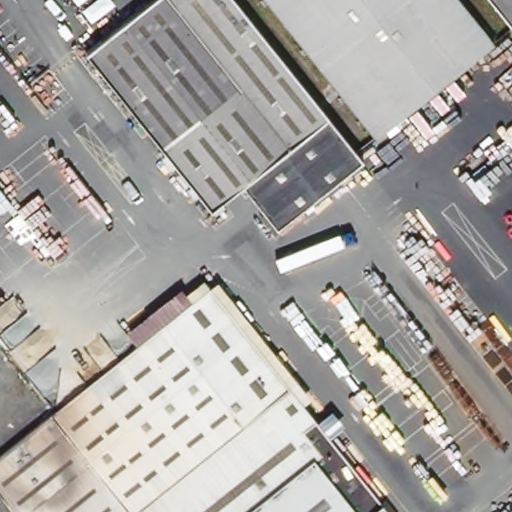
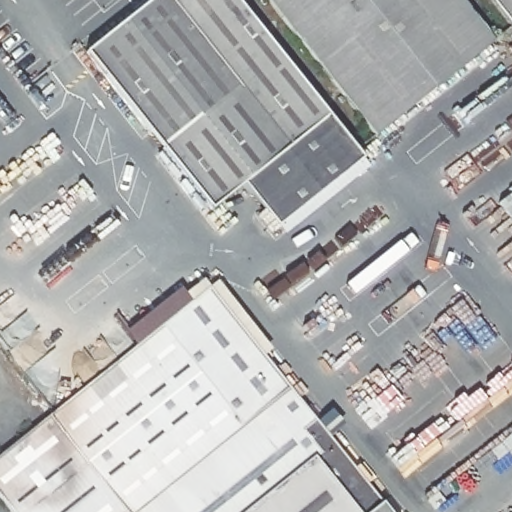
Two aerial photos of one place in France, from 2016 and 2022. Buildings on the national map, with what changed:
unchanged [(363,160),(277,229),(242,186),(211,211),(86,54),(135,14),(136,8),(144,2),(149,3),(152,0),(235,0),(328,118),(363,160)]
unchanged [(376,137),(267,0),(459,0),(493,44),(376,137)]
unchanged [(512,0),(512,28),(490,0),(512,0)]
unchanged [(316,421),(309,427),(300,434),(317,457),(248,512),(134,512),(55,412),(211,289),(316,421)]
unchanged [(0,496),(0,456),(50,416),(55,412),(134,512),(13,512),(0,496)]
unchanged [(317,457),(300,434),(309,427),(316,421),(383,506),(388,512),(248,512),(317,457)]

